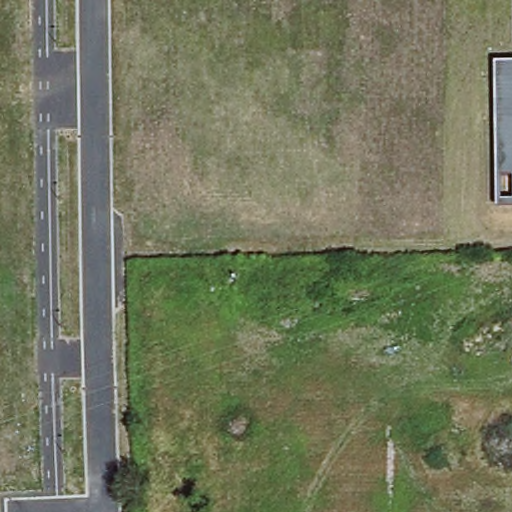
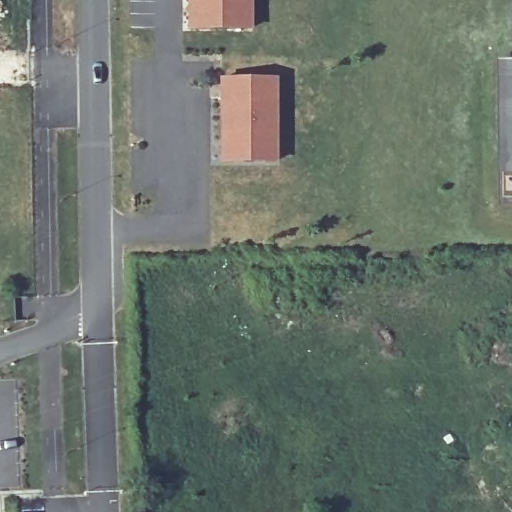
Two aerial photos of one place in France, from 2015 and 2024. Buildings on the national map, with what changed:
new [(188,0),(252,0),(252,30),(188,29),(188,0)]
unchanged [(512,205),(496,205),(495,58),(512,58),(512,205)]
new [(276,77),(277,162),(220,161),(219,79),(276,77)]

